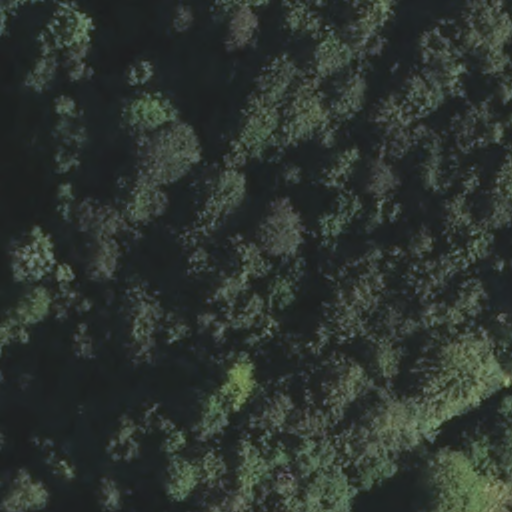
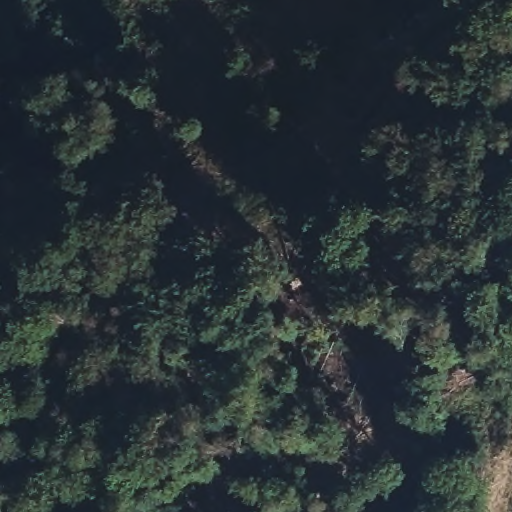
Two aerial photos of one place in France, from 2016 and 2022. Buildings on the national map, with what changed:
[]

